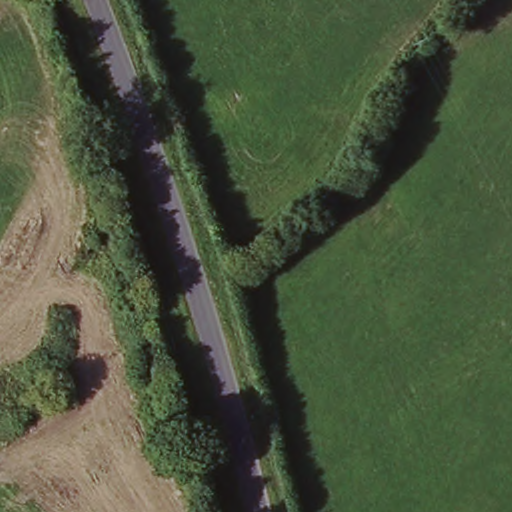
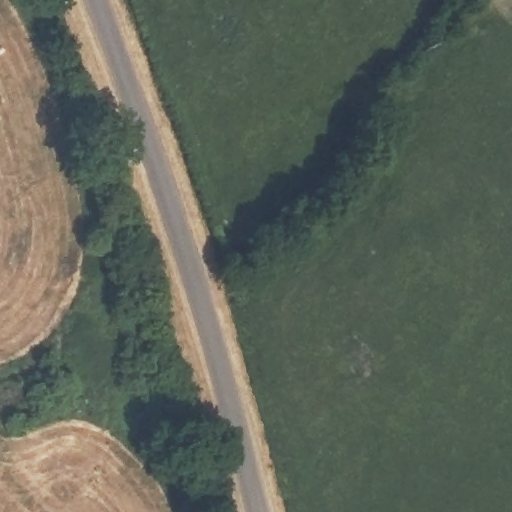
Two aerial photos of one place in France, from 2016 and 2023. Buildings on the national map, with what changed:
[]

